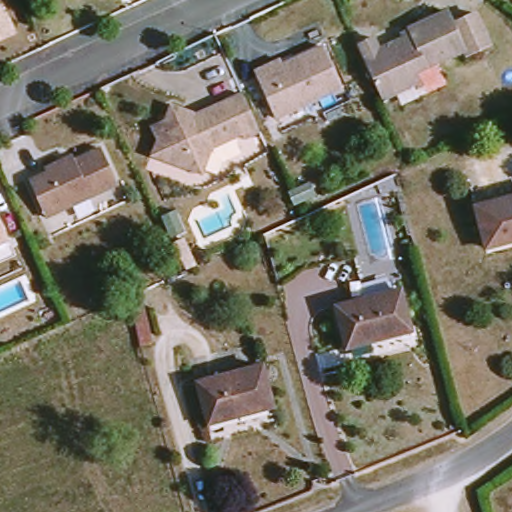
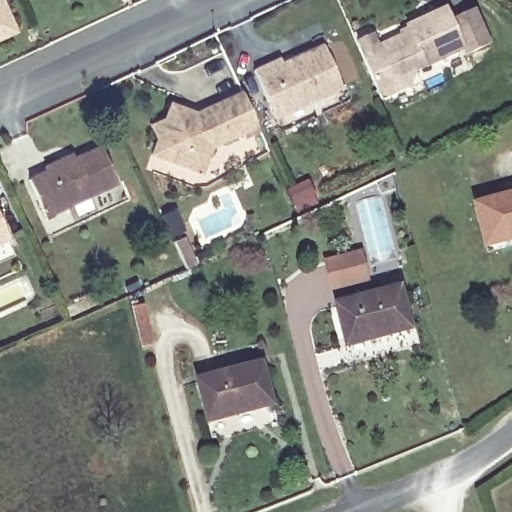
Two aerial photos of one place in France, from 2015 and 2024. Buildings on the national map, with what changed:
unchanged [(24,44),(0,55),(0,0),(4,0),(24,44)]
unchanged [(357,50),(372,43),(377,55),(401,44),(398,38),(445,16),(451,29),(473,18),(488,50),(466,60),(463,55),(414,78),(409,92),(382,105),(381,105),(356,50),(357,50)]
unchanged [(346,92),(280,123),(258,76),(280,66),(282,72),(327,51),(346,92)]
unchanged [(210,153),(201,178),(152,160),(157,145),(151,132),(164,126),(170,111),(208,125),(213,112),(241,99),(258,136),(243,143),(241,138),(210,153)]
unchanged [(121,189),(49,221),(33,184),(50,177),(48,172),(65,165),(76,160),(78,165),(105,152),(121,189)]
unchanged [(315,195),(293,205),(287,191),(309,181),(315,195)]
unchanged [(512,240),(485,247),(475,206),(512,196),(512,240)]
unchanged [(7,240),(0,243),(0,223),(7,240)]
unchanged [(187,269),(187,268),(186,268),(177,250),(174,242),(183,238),(186,246),(195,265),(187,269)]
new [(330,293),(322,261),(362,251),(370,283),(330,293)]
unchanged [(346,347),(335,306),(399,289),(410,330),(346,347)]
unchanged [(153,344),(140,347),(131,315),(129,308),(142,305),(153,344)]
unchanged [(206,419),(196,382),(261,365),(272,406),(232,417),(208,424),(206,419)]

